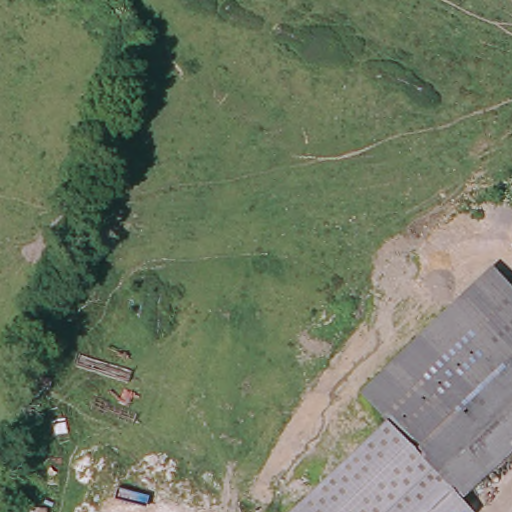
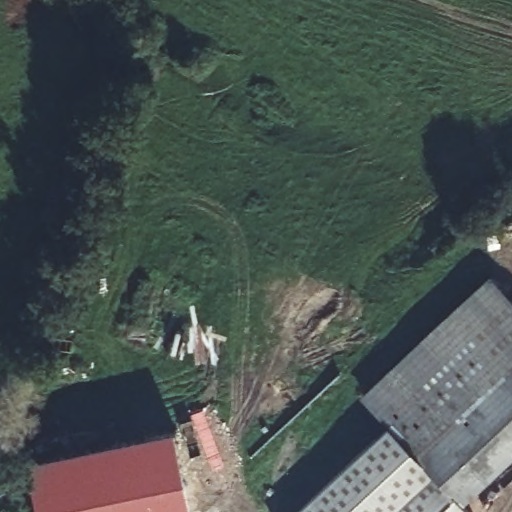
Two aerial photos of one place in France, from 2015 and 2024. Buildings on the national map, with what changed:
unchanged [(360,396),(494,271),(512,292),(512,459),(465,503),(473,512),(296,512),(388,424),(360,396)]
new [(175,428),(192,512),(40,512),(29,460),(175,428)]

